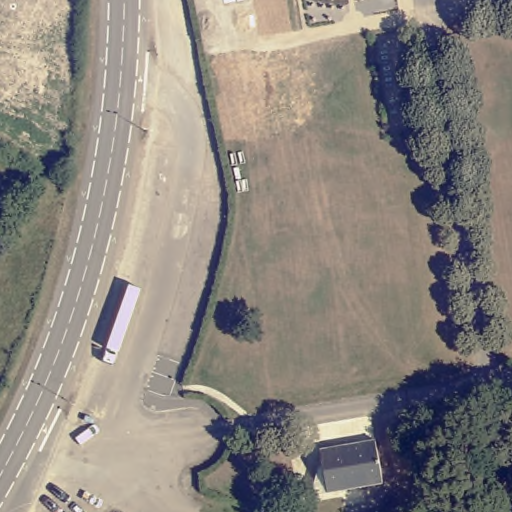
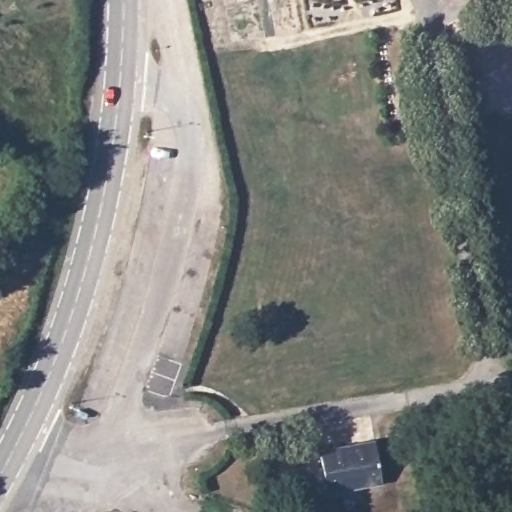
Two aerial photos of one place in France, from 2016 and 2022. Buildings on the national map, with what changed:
unchanged [(323,449),(378,440),(385,482),(369,485),(367,474),(344,478),(346,489),(330,491),(323,449)]

